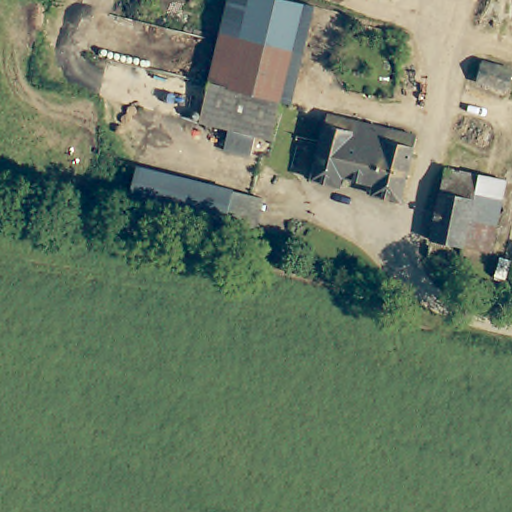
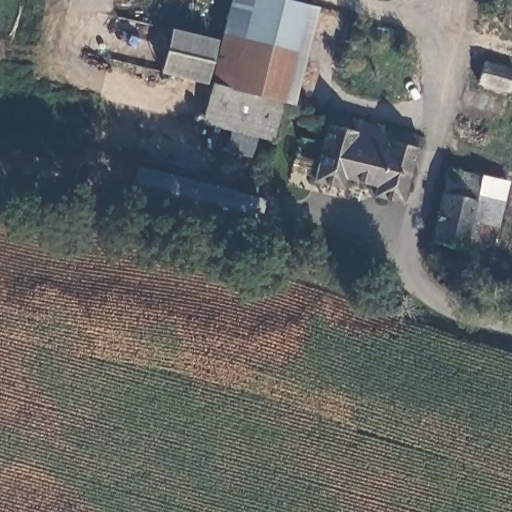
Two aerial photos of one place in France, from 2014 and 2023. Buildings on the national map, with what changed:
unchanged [(302,17),(280,102),(217,86),(210,85),(211,81),(228,14),(232,0),(283,0),(305,5),(302,17)]
new [(217,39),(206,85),(158,74),(169,27),(217,39)]
unchanged [(503,62),(512,64),(504,89),(498,87),(472,79),(480,55),(503,62)]
unchanged [(217,86),(280,102),(266,154),(253,150),(252,157),(225,151),(228,136),(199,130),(203,115),(210,85),(217,86)]
unchanged [(417,138),(402,200),(375,194),(376,184),(346,174),(343,185),(315,177),(333,115),(417,138)]
unchanged [(207,227),(147,211),(113,202),(127,153),(171,165),(221,178),(207,227)]
unchanged [(484,171),(468,245),(439,238),(455,164),(484,171)]
unchanged [(512,181),(495,250),(468,245),(484,171),(512,179),(512,181)]
unchanged [(252,185),(239,235),(207,227),(221,178),(252,185)]

